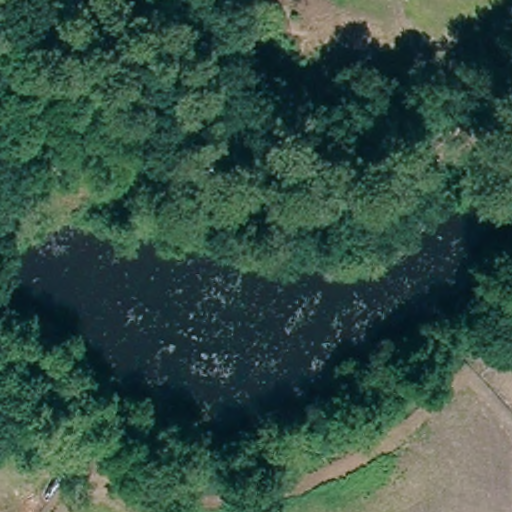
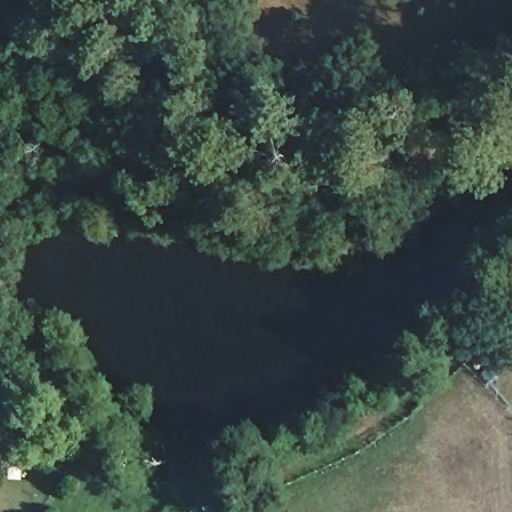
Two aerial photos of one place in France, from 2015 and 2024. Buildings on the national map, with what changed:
unchanged [(0,504),(0,496),(4,498),(0,504)]

